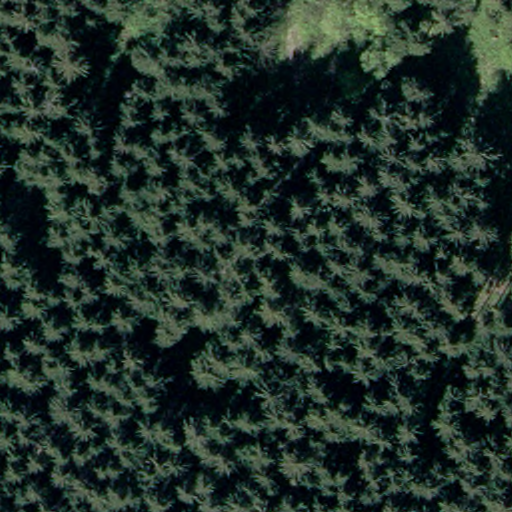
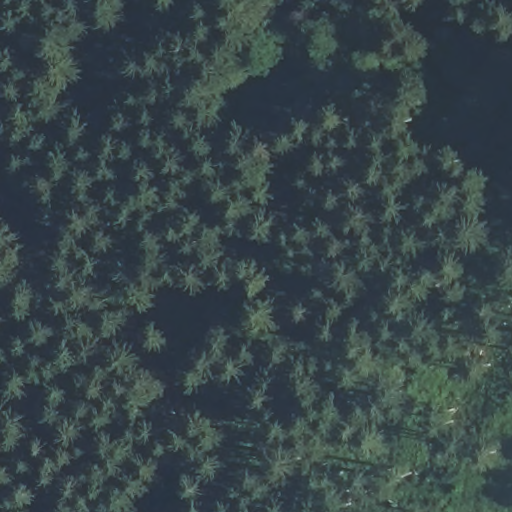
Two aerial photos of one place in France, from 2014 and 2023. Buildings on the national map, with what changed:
unchanged [(281,25),(276,26),(278,56),(265,58),(259,0),(279,0),(281,25)]

